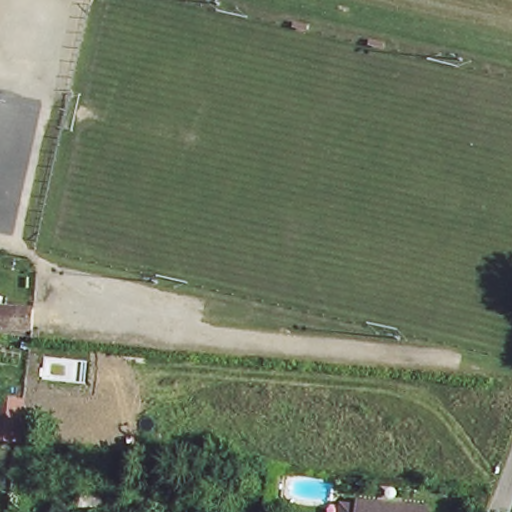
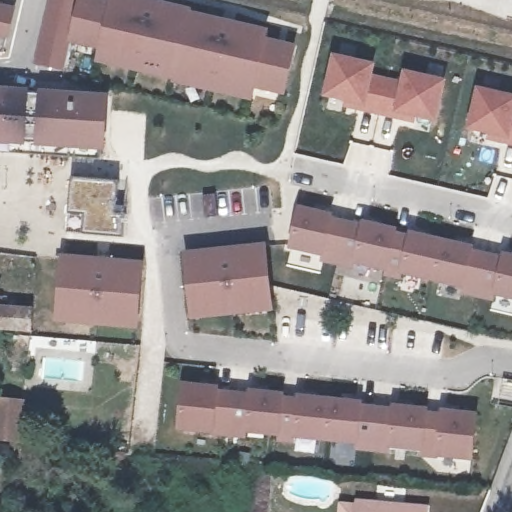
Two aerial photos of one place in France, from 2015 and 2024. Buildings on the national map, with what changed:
new [(49,0),(79,0),(68,42),(65,69),(35,64),(49,0)]
new [(166,0),(193,6),(192,9),(270,28),(268,36),(297,44),(285,95),(255,89),(252,101),(172,83),(172,80),(95,63),(98,50),(68,42),(79,0),(166,0)]
new [(7,38),(3,50),(0,50),(0,2),(16,6),(7,38)]
new [(385,61),(382,76),(410,84),(413,69),(457,79),(447,120),(414,113),(412,121),(352,105),(353,98),(333,92),(344,51),(385,61)]
new [(512,138),(498,135),(500,129),(477,124),(487,85),(512,91),(512,138)]
new [(30,88),(30,92),(40,93),(40,89),(110,93),(113,94),(110,145),(106,145),(106,150),(101,150),(100,158),(0,152),(0,86),(30,88)]
new [(67,232),(70,213),(72,177),(120,181),(118,205),(127,206),(125,237),(85,234),(67,232)]
new [(215,193),(218,216),(205,217),(202,195),(215,193)]
new [(298,205),(334,213),(333,217),(360,223),(361,218),(398,226),(397,232),(408,234),(410,229),(475,244),(473,249),(501,256),(502,251),(512,253),(512,298),(496,295),(493,301),(461,295),(463,288),(401,275),(400,280),(384,276),(385,270),(354,263),(352,268),(320,262),(322,255),(288,248),(298,205)]
new [(266,242),(275,310),(190,319),(183,251),(266,242)]
new [(145,260),(140,329),(55,322),(62,254),(145,260)]
unchanged [(35,321),(34,342),(0,340),(0,318),(35,321)]
new [(176,430),(181,381),(220,385),(220,389),(248,392),(249,387),(285,392),(285,396),(296,397),(297,393),(363,399),(363,404),(391,407),(392,402),(430,406),(430,410),(440,412),(440,407),(478,411),(472,459),(437,456),(436,460),(420,458),(421,451),(390,448),(389,454),(355,451),(355,444),(295,438),(294,443),(276,442),(276,436),(246,433),(246,441),(212,439),(213,434),(176,430)]
unchanged [(27,399),(25,415),(22,439),(19,439),(0,437),(0,396),(27,399)]
unchanged [(350,505),(365,507),(366,503),(435,510),(435,512),(349,512),(350,505)]

